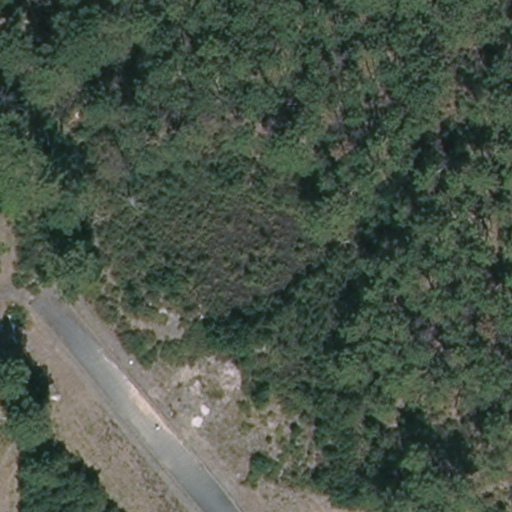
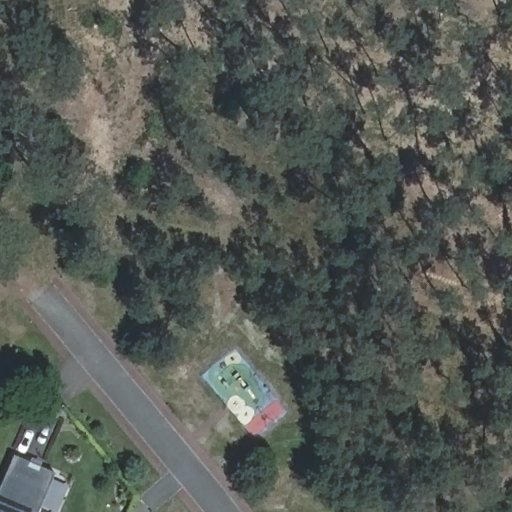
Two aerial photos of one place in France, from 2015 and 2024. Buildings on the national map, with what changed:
new [(40,506),(38,512),(0,512),(0,489),(13,457),(55,474),(52,480),(69,487),(59,512),(55,512),(40,506)]

